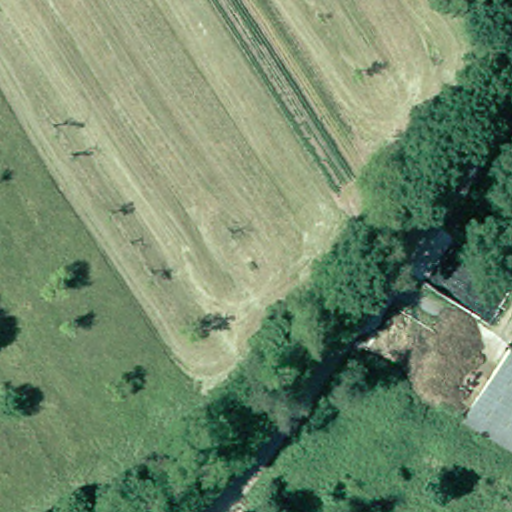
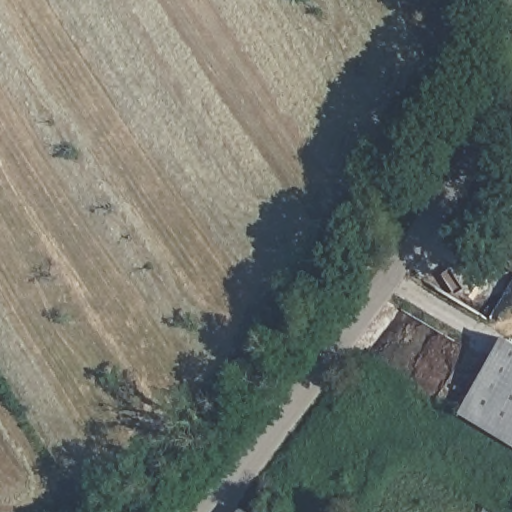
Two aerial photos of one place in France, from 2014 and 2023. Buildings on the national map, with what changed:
unchanged [(510,342),(512,344),(512,447),(463,417),(510,342)]

